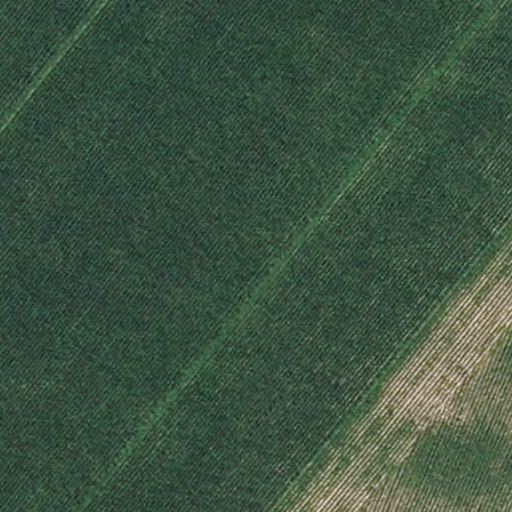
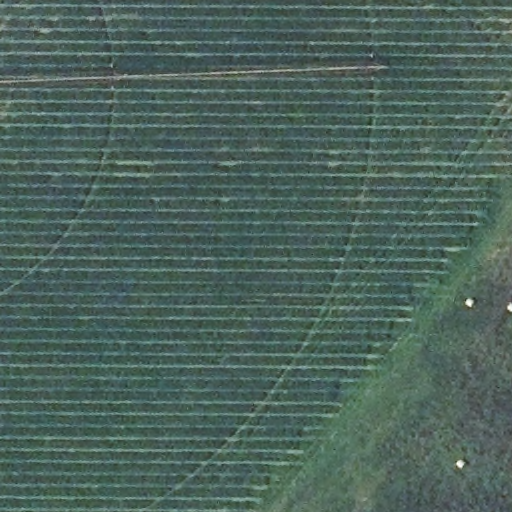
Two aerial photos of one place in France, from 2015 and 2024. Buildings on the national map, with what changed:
[]

